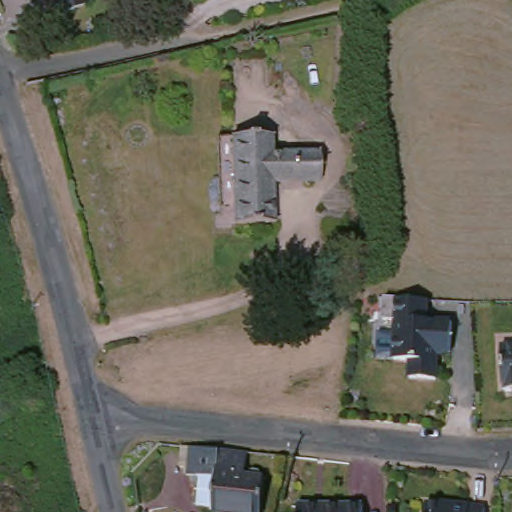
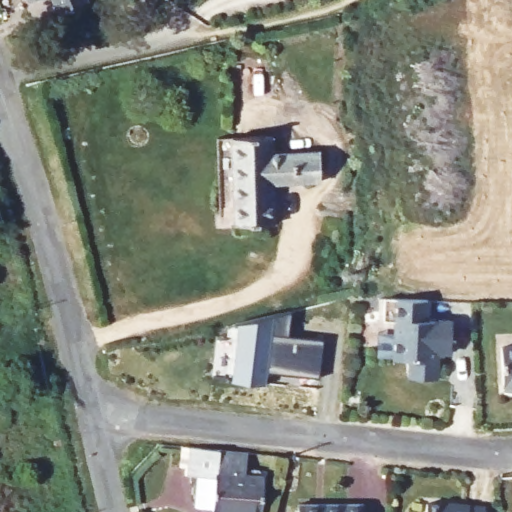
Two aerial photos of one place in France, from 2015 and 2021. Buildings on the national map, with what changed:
unchanged [(30,0),(37,0),(31,2),(30,0)]
unchanged [(63,17),(56,0),(88,0),(90,5),(63,17)]
unchanged [(277,138),(278,155),(326,154),(326,183),(279,185),(281,225),(241,226),(241,209),(226,209),(225,179),(239,178),(239,140),(277,138)]
unchanged [(429,306),(428,326),(453,327),(452,358),(439,357),(438,385),(412,383),(413,365),(396,365),(397,326),(385,325),(386,305),(386,304),(429,306)]
new [(269,370),(266,385),(231,380),(211,377),(216,335),(226,335),(227,325),(237,322),(291,311),(286,335),(323,342),(319,377),(269,370)]
unchanged [(509,395),(509,386),(505,387),(503,350),(512,349),(512,394),(509,395)]
unchanged [(249,477),(246,512),(207,512),(198,511),(201,480),(181,477),(174,477),(176,446),(184,447),(234,452),(231,475),(249,477)]
unchanged [(366,500),(366,512),(300,512),(301,497),(366,500)]
unchanged [(424,510),(448,512),(423,512),(424,510)]
unchanged [(448,510),(471,512),(448,512),(448,510)]

